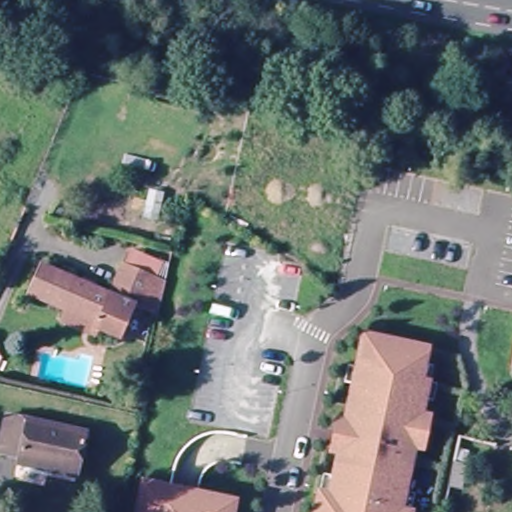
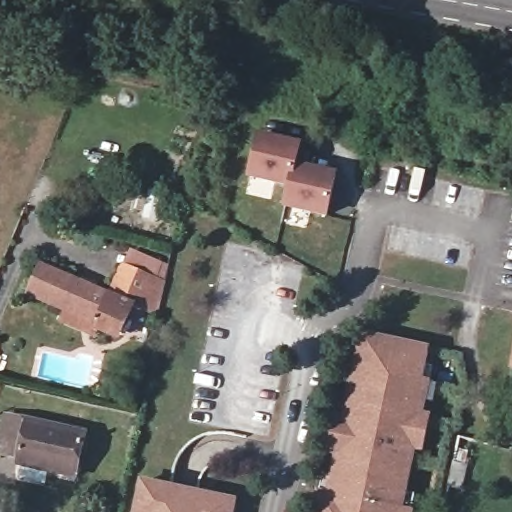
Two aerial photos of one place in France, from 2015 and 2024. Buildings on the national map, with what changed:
new [(255,134),(294,143),(290,163),(330,172),(321,211),(281,202),(285,182),(246,173),(255,134)]
unchanged [(40,261),(107,291),(120,262),(155,278),(148,310),(132,303),(122,329),(99,319),(94,331),(61,317),(66,305),(29,288),(40,261)]
unchanged [(321,485),(322,475),(332,477),(337,453),(331,451),(337,422),(343,424),(352,385),(345,383),(348,366),(356,368),(363,336),(427,350),(423,365),(430,367),(427,383),(427,387),(434,389),(430,406),(423,404),(420,419),(427,421),(422,447),(414,445),(404,492),(414,494),(411,506),(410,512),(315,512),(318,494),(321,485)]
unchanged [(22,471),(25,461),(25,458),(5,454),(14,416),(92,433),(82,479),(59,474),(59,478),(22,471)]
unchanged [(462,491),(449,488),(454,463),(457,449),(467,451),(465,465),(467,466),(462,491)]
unchanged [(237,503),(235,512),(139,512),(146,483),(237,503)]

